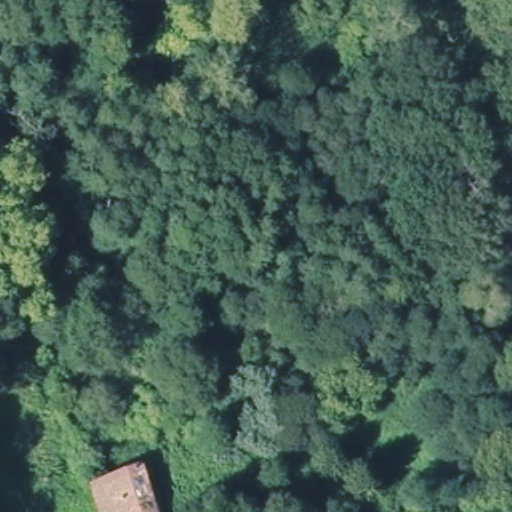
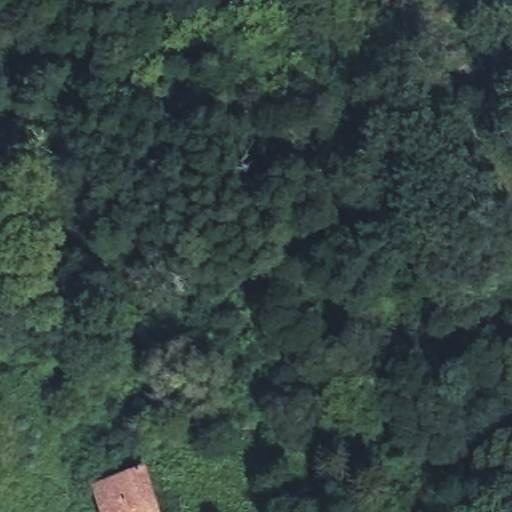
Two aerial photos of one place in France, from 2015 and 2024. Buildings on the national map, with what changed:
unchanged [(100,478),(128,470),(145,466),(160,512),(112,512),(100,478)]

